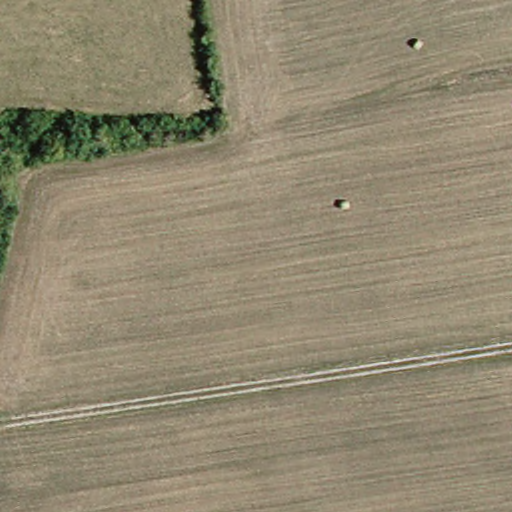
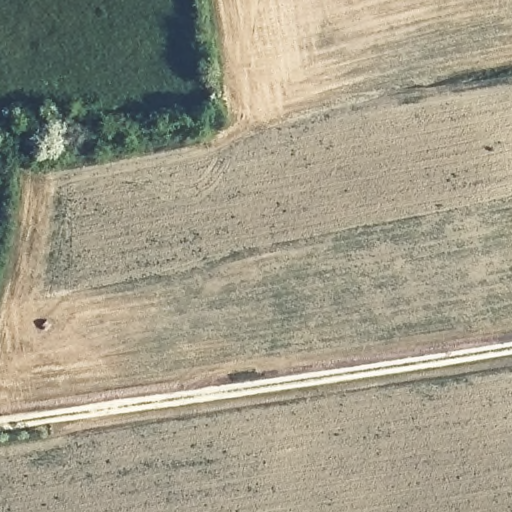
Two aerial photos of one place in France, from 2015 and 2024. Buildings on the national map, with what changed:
[]

